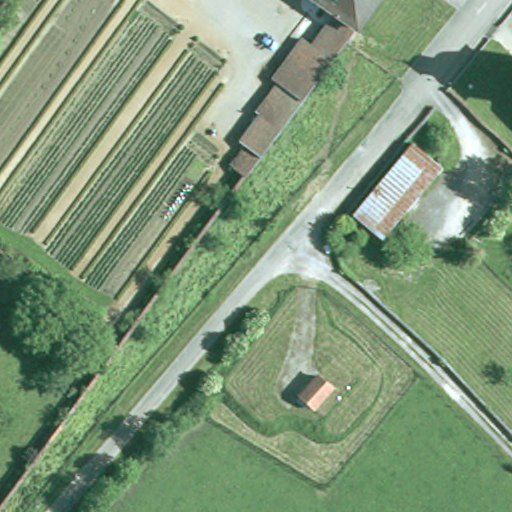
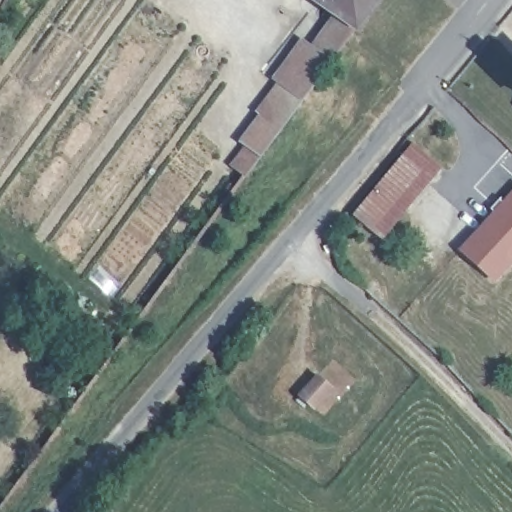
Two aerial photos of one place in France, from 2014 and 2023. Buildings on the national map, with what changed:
unchanged [(278,87),(270,81),(300,37),(313,47),(335,12),(355,26),(374,0),(384,0),(250,180),(230,166),(245,147),(239,142),(278,87)]
unchanged [(374,0),(355,26),(335,12),(317,0),(374,0)]
unchanged [(385,240),(357,219),(416,145),(443,167),(385,240)]
new [(512,263),(493,284),(457,250),(512,191),(512,263)]
unchanged [(297,396),(317,373),(334,389),(315,411),(297,396)]

